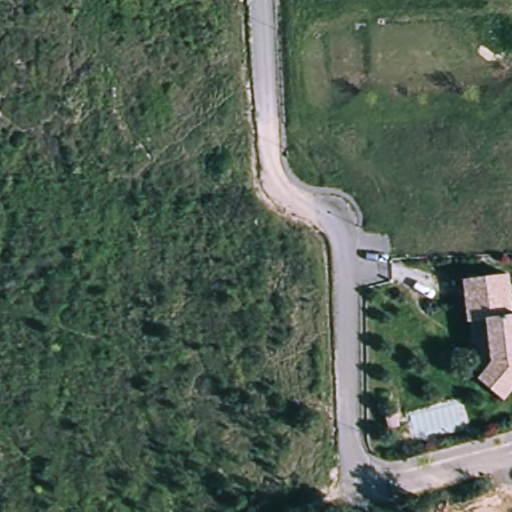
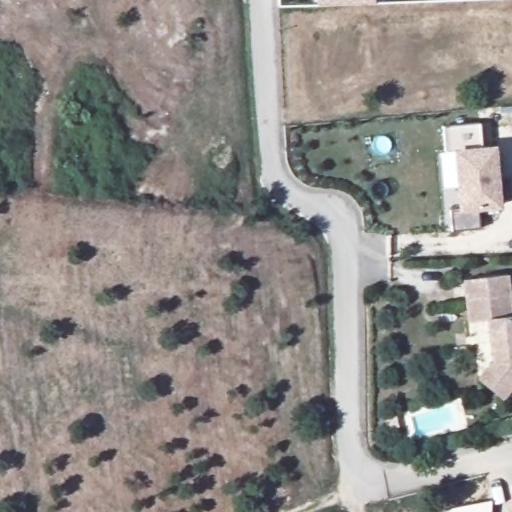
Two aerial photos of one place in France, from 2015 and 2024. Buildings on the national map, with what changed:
new [(493,148),(495,172),(500,171),(502,192),(497,194),(499,205),(479,207),(480,228),(451,232),(450,210),(460,209),(455,150),(444,151),(442,126),(480,123),(482,148),(493,148)]
unchanged [(479,380),(492,363),(487,320),(469,321),(465,279),(509,275),(512,316),(512,393),(505,401),(479,380)]

